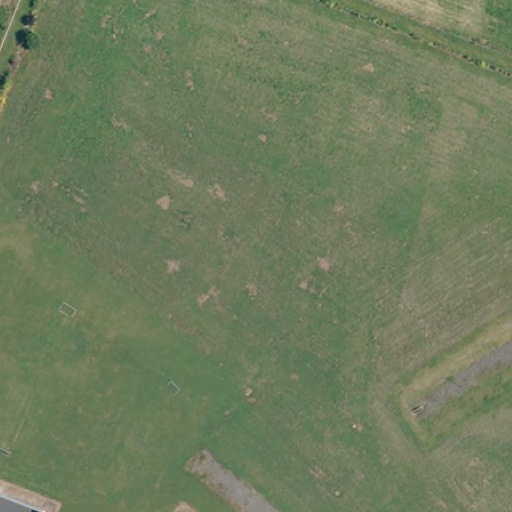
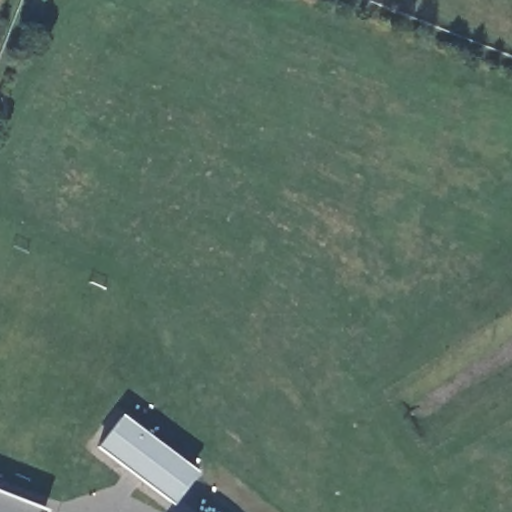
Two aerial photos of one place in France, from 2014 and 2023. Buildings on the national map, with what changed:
new [(171,504),(95,448),(120,415),(196,472),(171,504)]
unchanged [(41,509),(40,512),(0,512),(0,493),(41,509)]

